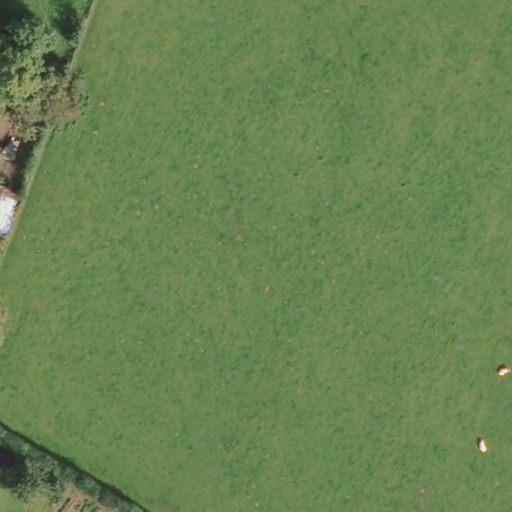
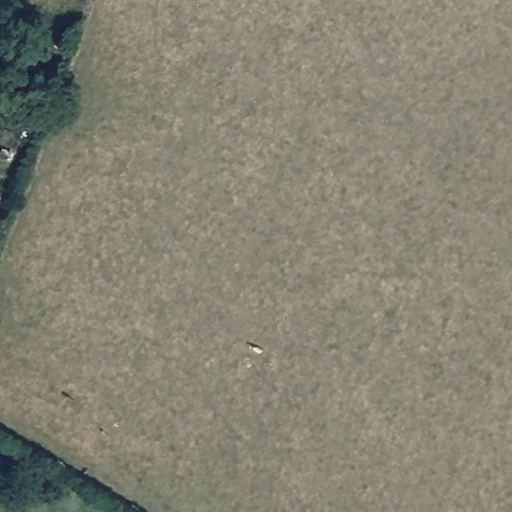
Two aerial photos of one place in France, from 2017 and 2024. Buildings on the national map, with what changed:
unchanged [(13,191),(6,238),(0,238),(0,189),(13,191)]

